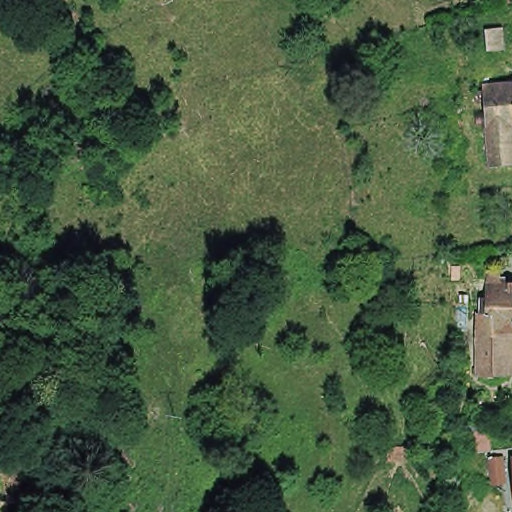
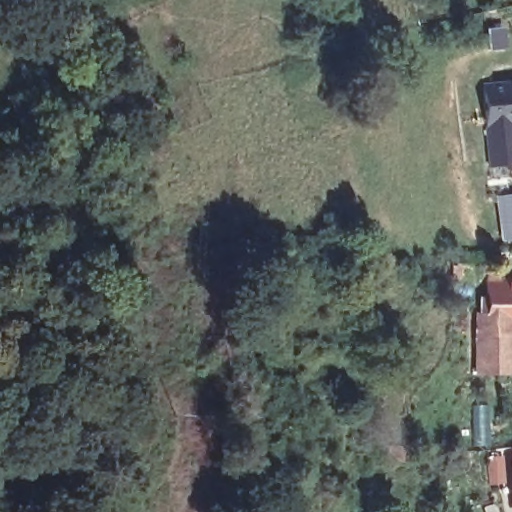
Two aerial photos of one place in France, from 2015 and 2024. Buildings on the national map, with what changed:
unchanged [(477,34),(489,36),(485,56),(472,54),(477,34)]
unchanged [(512,83),(512,125),(509,125),(510,164),(487,166),(480,86),(512,83)]
new [(512,193),(512,240),(501,242),(495,195),(512,193)]
unchanged [(507,327),(506,372),(478,373),(479,327),(485,327),(486,279),(512,280),(512,328),(507,327)]

